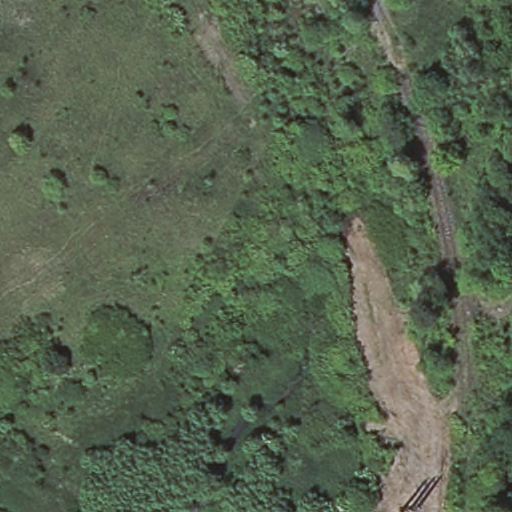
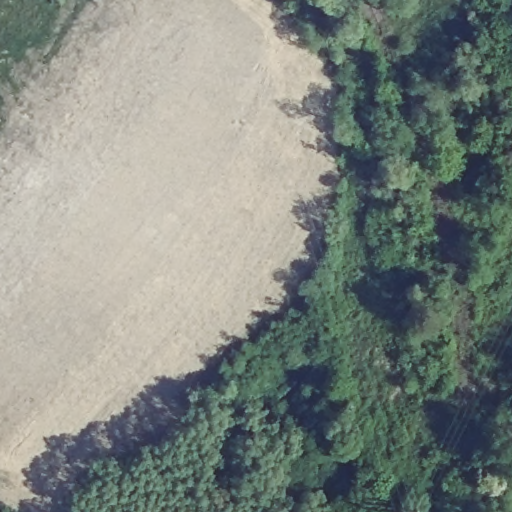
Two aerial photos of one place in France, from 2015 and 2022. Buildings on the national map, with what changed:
[]

